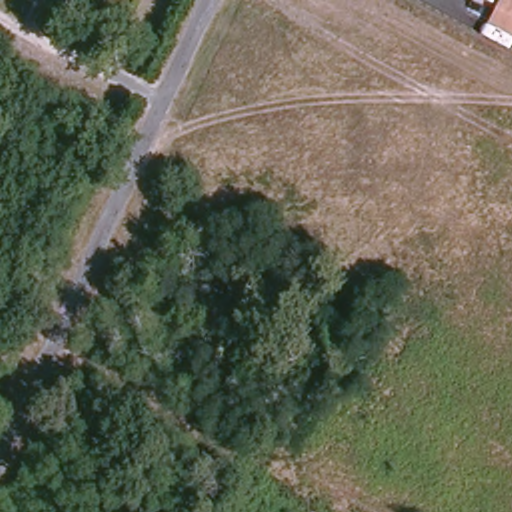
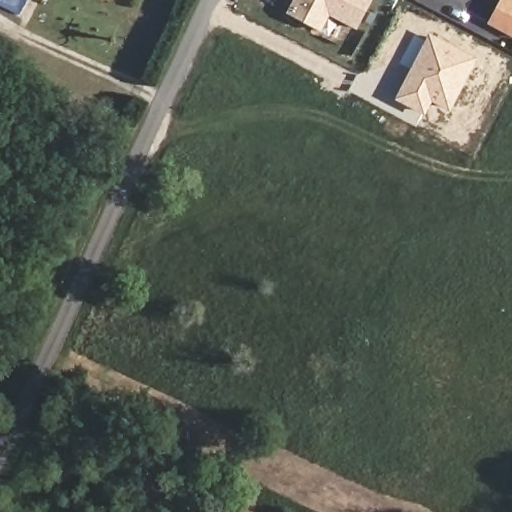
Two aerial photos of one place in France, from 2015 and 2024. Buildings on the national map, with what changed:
new [(372,0),(356,30),(329,16),(321,32),(286,14),(293,0),(372,0)]
unchanged [(512,0),(512,36),(488,23),(501,0),(512,0)]
new [(431,33),(476,55),(449,109),(428,98),(421,112),(393,100),(431,33)]

